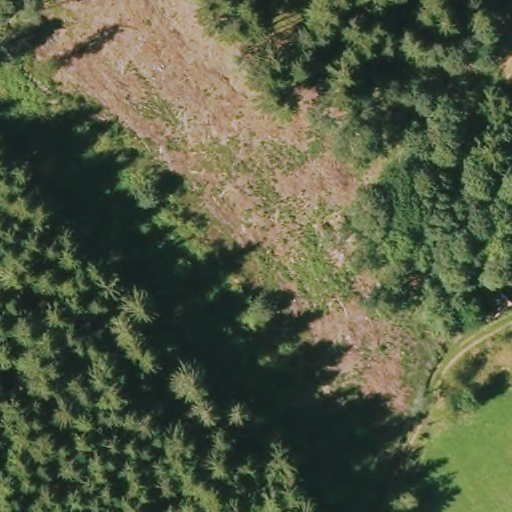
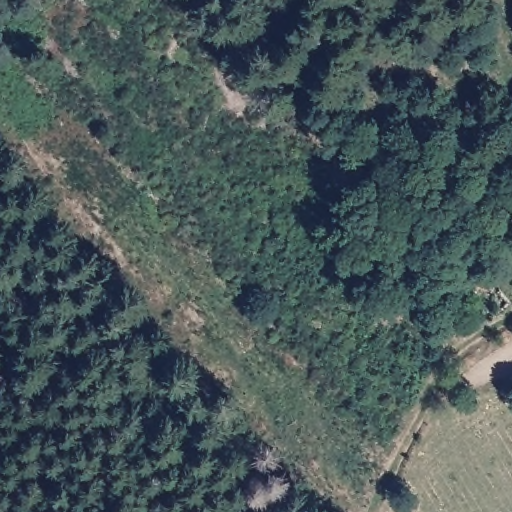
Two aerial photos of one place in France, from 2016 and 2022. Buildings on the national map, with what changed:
unchanged [(468,281),(477,297),(501,285),(512,299),(512,311),(477,330),(451,290),(468,281)]

